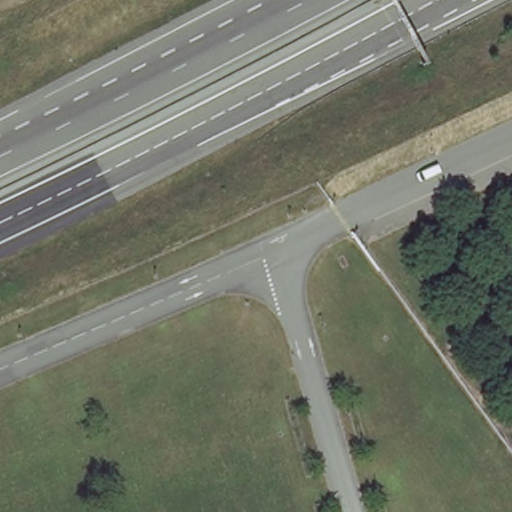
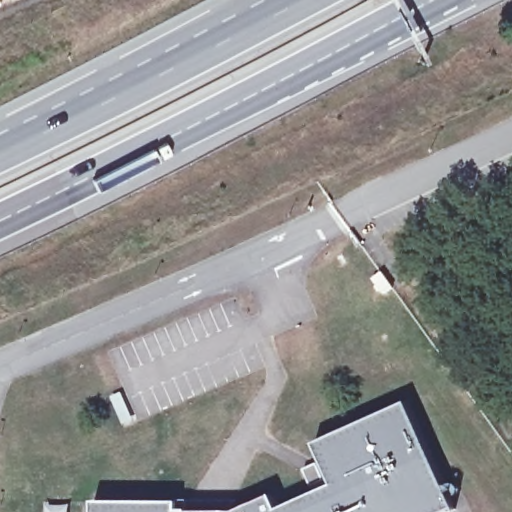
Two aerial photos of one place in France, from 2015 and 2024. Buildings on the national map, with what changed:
new [(380,273),(391,289),(382,295),(371,280),(380,273)]
new [(240,512),(272,497),(278,512),(316,495),(304,470),(324,464),(316,445),(408,404),(453,509),(446,512),(240,512)]
new [(179,504),(178,501),(239,502),(237,512),(95,512),(95,504),(179,504)]

